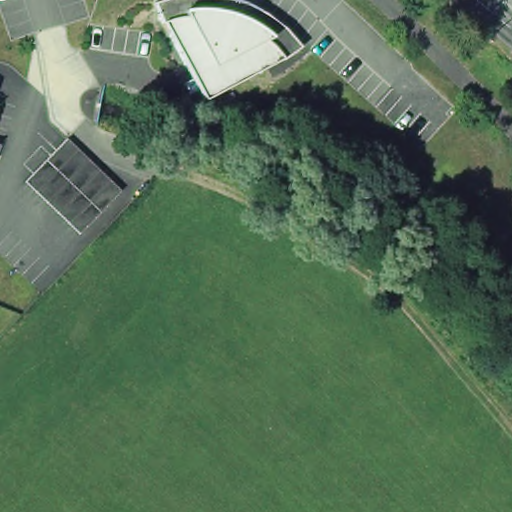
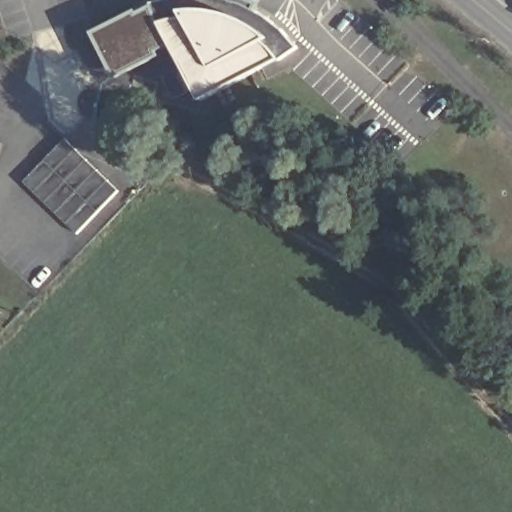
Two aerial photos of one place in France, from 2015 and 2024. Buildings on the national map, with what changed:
unchanged [(158,27),(150,6),(160,2),(171,0),(222,0),(232,2),(243,6),(253,11),(261,15),(270,22),(280,30),(285,36),(292,45),(297,51),(295,53),(282,60),(200,105),(160,26),(158,27)]
new [(159,51),(161,56),(117,79),(93,31),(138,9),(139,11),(150,6),(158,27),(160,26),(170,46),(159,51)]
unchanged [(66,139),(118,189),(76,230),(23,181),(66,139)]

